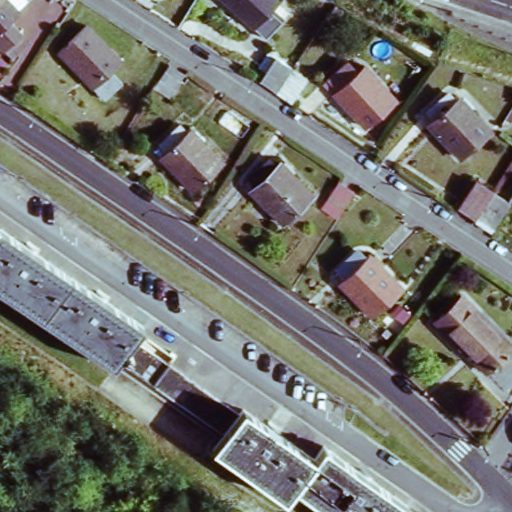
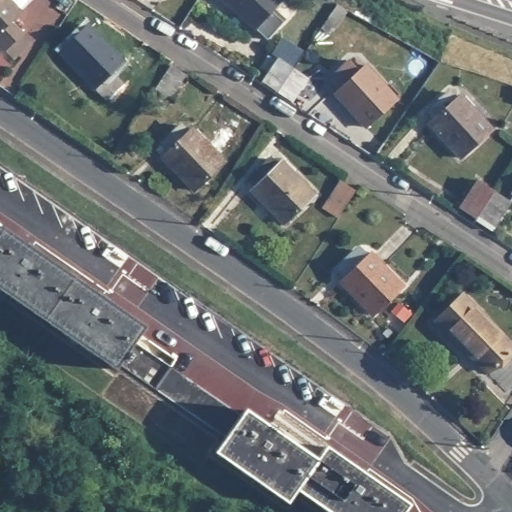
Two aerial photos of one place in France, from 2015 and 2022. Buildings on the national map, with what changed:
unchanged [(16,22),(28,35),(11,52),(0,40),(0,0),(15,0),(27,12),(16,22)]
unchanged [(59,28),(44,19),(56,0),(71,0),(75,3),(59,28)]
unchanged [(273,1),(263,12),(275,23),(259,41),(215,0),(272,0),(273,1)]
unchanged [(346,12),(338,25),(329,19),(338,6),(346,12)]
unchanged [(114,62),(103,73),(115,84),(98,101),(52,53),(80,26),(114,62)]
unchanged [(290,98),(274,88),(259,77),(264,69),(258,64),(268,49),(290,64),(306,75),(290,98)]
unchanged [(0,82),(0,50),(3,53),(15,65),(0,82)]
unchanged [(360,73),(367,66),(399,100),(368,128),(337,94),(326,83),(331,78),(349,62),(360,73)]
unchanged [(186,75),(171,98),(156,89),(171,66),(186,75)]
unchanged [(457,101),(462,96),(493,130),(463,159),(431,125),(439,117),(432,110),(450,93),(457,101)]
unchanged [(189,134),(194,129),(226,162),(196,191),(156,151),(181,126),(189,134)]
unchanged [(281,170),(284,167),(314,200),(285,229),(253,197),(260,190),(253,182),(273,163),(281,170)]
unchanged [(339,218),(324,210),(339,182),(354,190),(339,218)]
unchanged [(494,230),(478,219),(461,208),(478,182),(495,193),(512,204),(494,230)]
unchanged [(60,269),(141,323),(111,368),(69,339),(0,291),(0,227),(60,269)]
unchanged [(368,259),(373,255),(404,287),(374,316),(342,283),(349,276),(341,269),(360,251),(368,259)]
unchanged [(483,377),(412,305),(439,279),(509,352),(483,377)]
unchanged [(238,414),(223,437),(152,388),(167,365),(238,414)]
unchanged [(241,409),(314,459),(323,447),(404,503),(398,512),(327,512),(294,490),(284,503),(212,453),(223,437),(238,414),(241,409)]

